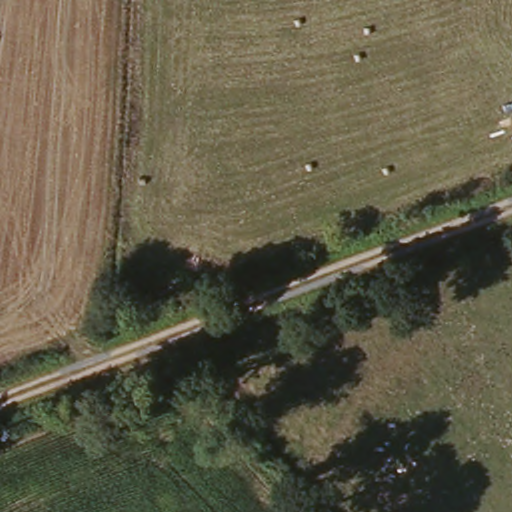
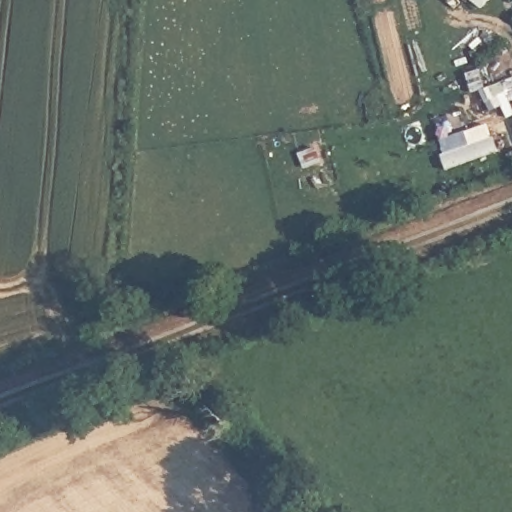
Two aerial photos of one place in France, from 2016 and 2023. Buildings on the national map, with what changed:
new [(447,169),(441,140),(486,123),(497,150),(447,169)]

